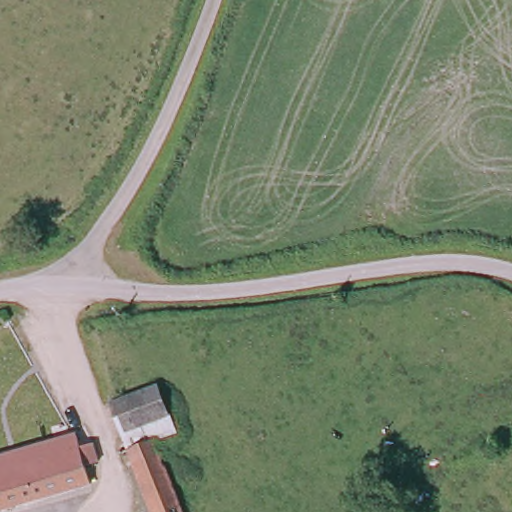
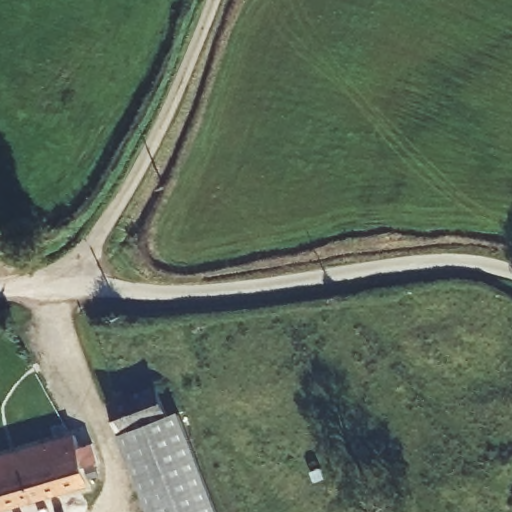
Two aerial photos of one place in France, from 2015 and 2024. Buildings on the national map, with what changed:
demolished [(145,382),(167,430),(150,438),(122,450),(102,400),(145,382)]
new [(171,409),(181,407),(220,512),(154,512),(116,412),(165,393),(171,409)]
demolished [(150,438),(161,464),(180,512),(149,512),(122,450),(150,438)]
unchanged [(58,443),(67,440),(71,451),(84,447),(90,465),(77,469),(83,488),(77,490),(57,496),(11,512),(0,512),(0,462),(49,446),(58,443)]

